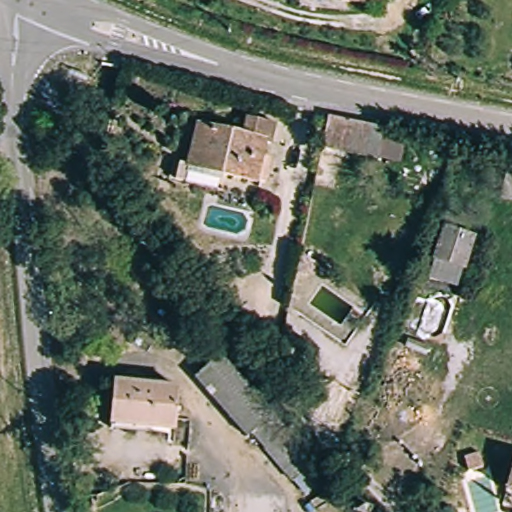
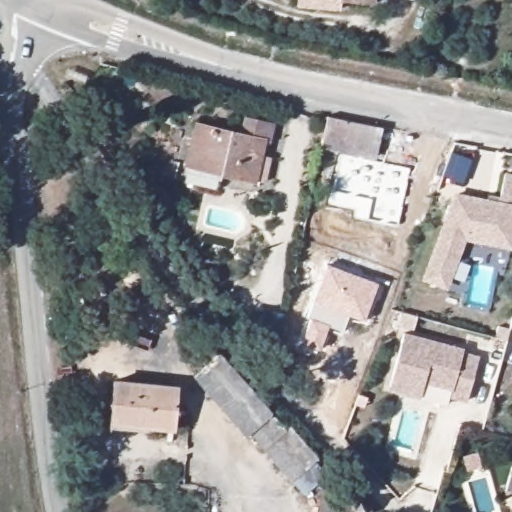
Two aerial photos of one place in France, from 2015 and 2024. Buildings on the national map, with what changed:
unchanged [(379,1),(362,0),(379,0),(379,1)]
unchanged [(204,115),(270,135),(260,174),(194,154),(204,115)]
unchanged [(384,129),(378,158),(324,146),(329,117),(384,129)]
unchanged [(501,169),(512,171),(512,193),(495,190),(501,169)]
new [(448,292),(423,281),(455,193),(512,204),(512,250),(468,241),(448,292)]
demolished [(444,224),(475,230),(467,260),(437,253),(444,224)]
new [(365,320),(349,314),(343,332),(329,327),(320,350),(302,342),(310,320),(307,318),(328,264),(379,283),(365,320)]
new [(285,313),(281,337),(252,332),(257,308),(285,313)]
new [(499,327),(511,331),(508,341),(496,337),(499,327)]
new [(451,391),(424,384),(421,398),(389,390),(405,333),(464,349),(463,353),(480,357),(469,402),(451,398),(451,391)]
unchanged [(265,460),(252,445),(201,383),(223,364),(274,425),(287,441),(265,460)]
unchanged [(115,382),(182,388),(176,431),(111,424),(115,382)]
demolished [(308,452),(286,471),(274,456),(295,436),(308,452)]
unchanged [(512,481),(512,497),(509,496),(512,481)]

